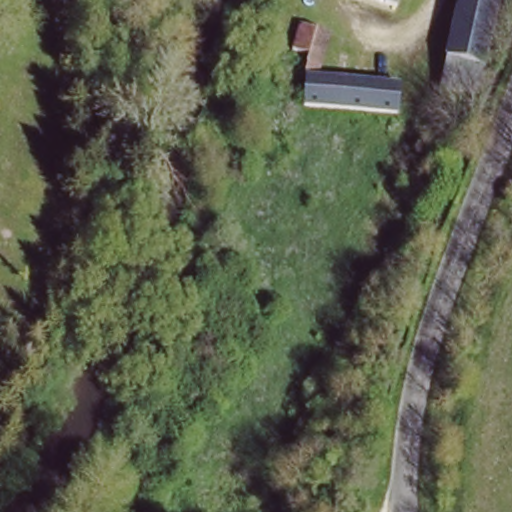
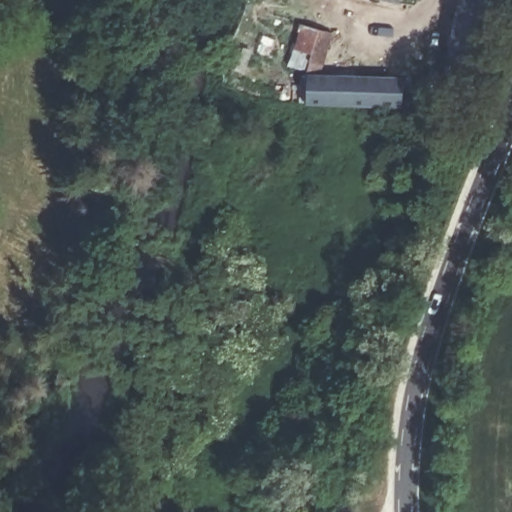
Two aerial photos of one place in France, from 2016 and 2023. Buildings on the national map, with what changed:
unchanged [(389,0),(397,0),(397,2),(389,0)]
unchanged [(462,66),(443,63),(456,0),(497,0),(481,71),(462,66)]
unchanged [(332,30),(320,73),(402,78),(401,106),(307,101),(308,72),(306,71),(312,51),(295,46),(301,21),(332,30)]

